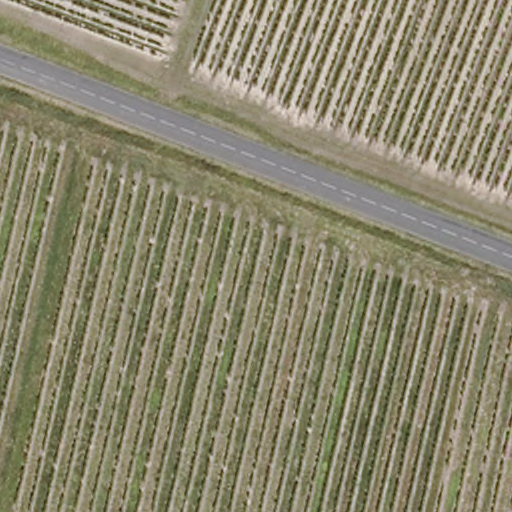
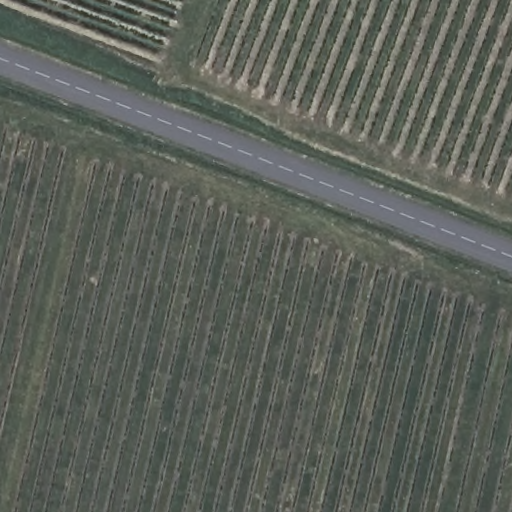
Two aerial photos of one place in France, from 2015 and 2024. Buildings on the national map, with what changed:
[]

